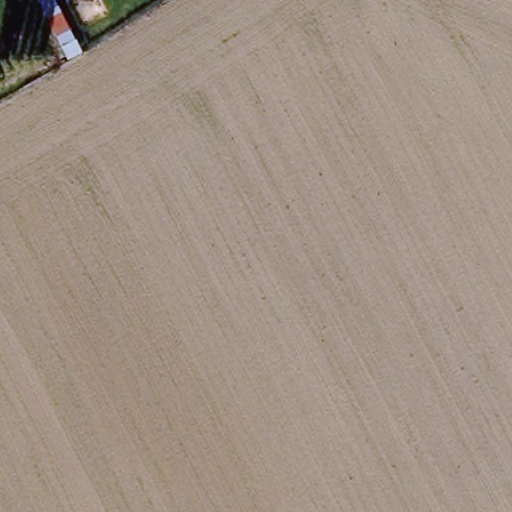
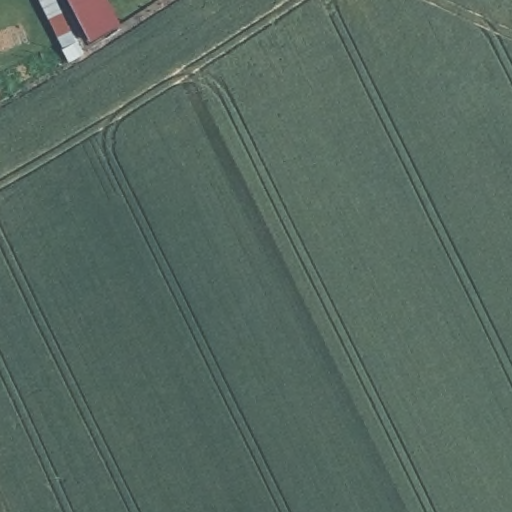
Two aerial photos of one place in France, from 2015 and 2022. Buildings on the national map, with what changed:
unchanged [(39,0),(54,0),(80,54),(67,61),(39,0)]
new [(120,25),(90,42),(67,0),(107,0),(120,25)]

